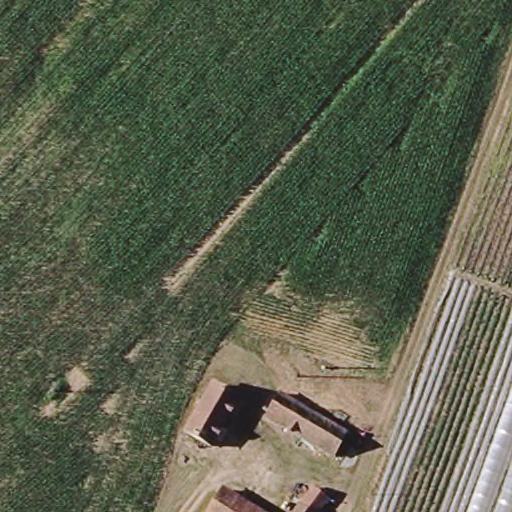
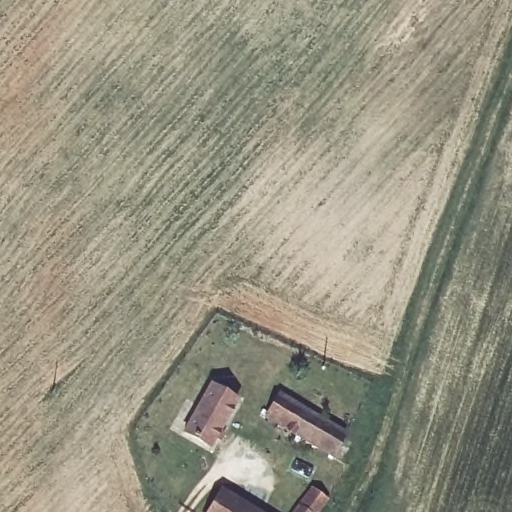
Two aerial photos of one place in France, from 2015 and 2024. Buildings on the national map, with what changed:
unchanged [(210,446),(185,431),(213,386),(237,401),(210,446)]
demolished [(512,387),(512,512),(466,512),(512,387)]
unchanged [(267,420),(280,396),(344,434),(329,457),(267,420)]
unchanged [(308,490),(327,503),(320,512),(293,512),(308,490)]
unchanged [(258,512),(214,512),(225,492),(258,512)]

